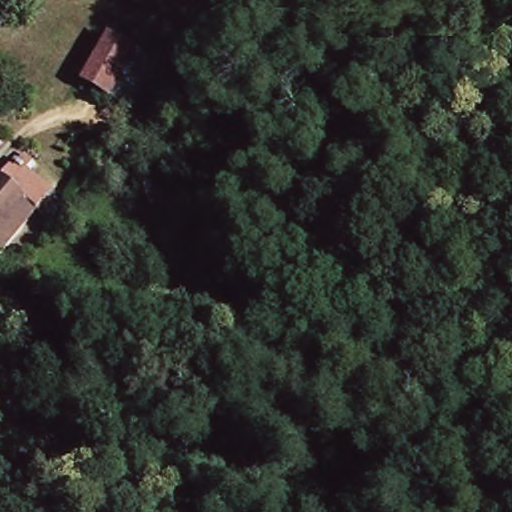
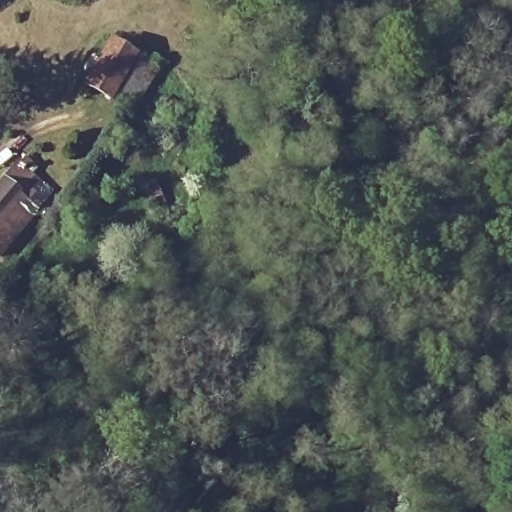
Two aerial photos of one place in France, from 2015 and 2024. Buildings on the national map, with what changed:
unchanged [(135,52),(155,64),(135,108),(112,98),(81,85),(107,36),(135,52)]
unchanged [(30,171),(51,189),(39,204),(0,251),(0,183),(18,161),(20,163),(25,158),(35,165),(30,171)]

